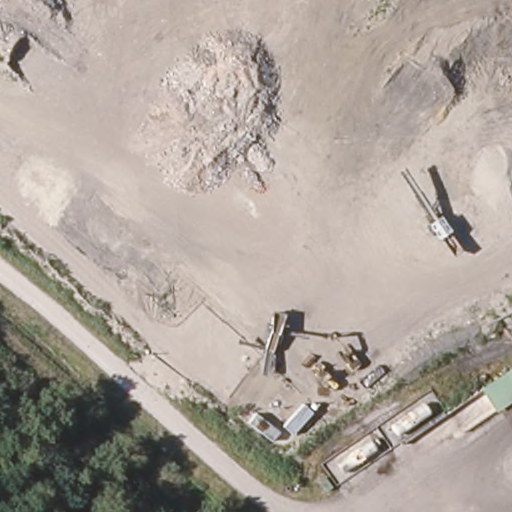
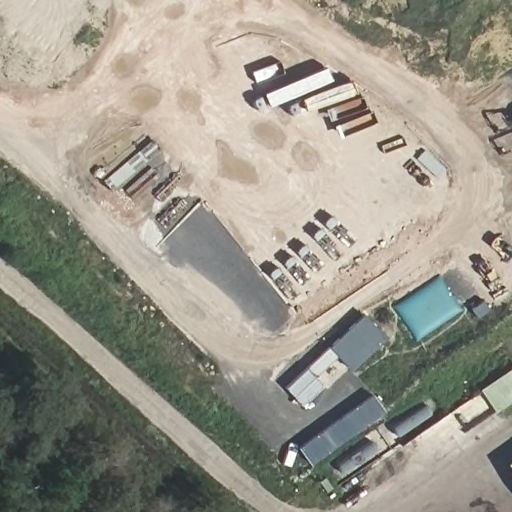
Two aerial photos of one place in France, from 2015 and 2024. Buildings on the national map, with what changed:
new [(386,337),(350,370),(336,356),(315,376),(323,385),(302,405),(285,387),(364,313),(386,337)]
unchanged [(512,369),(512,403),(500,411),(484,388),(512,369)]
new [(311,463),(299,447),(372,393),(384,410),(311,463)]
unchanged [(512,484),(497,464),(512,454),(512,484)]

